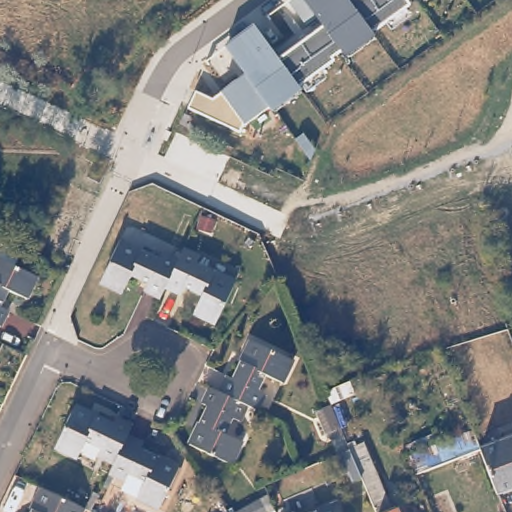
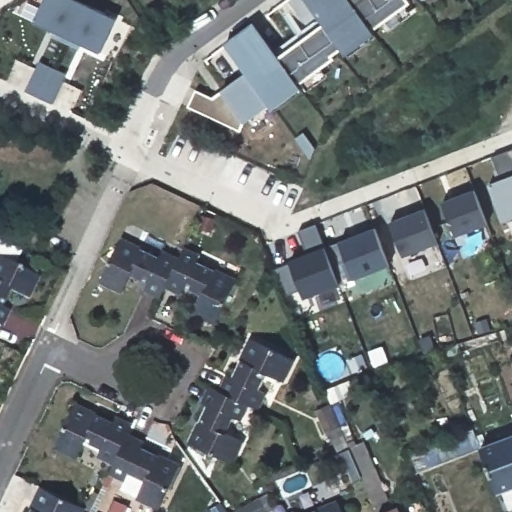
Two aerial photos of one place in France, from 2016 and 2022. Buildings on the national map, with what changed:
new [(44,0),(78,0),(116,17),(102,52),(34,21),(44,0)]
unchanged [(372,31),(375,36),(348,56),(343,51),(299,85),(302,89),(274,111),(269,105),(245,125),(241,132),(187,106),(195,90),(215,98),(221,93),(246,74),(224,44),(254,21),(278,56),(321,24),(305,0),(413,0),(372,31)]
new [(503,222),(488,182),(498,177),(493,155),(512,148),(512,219),(503,222)]
new [(473,189),(488,224),(455,236),(441,201),(473,189)]
new [(424,207),(437,242),(402,256),(388,221),(424,207)]
new [(290,263),(290,262),(306,255),(297,232),(316,225),(325,248),(332,267),(339,286),(303,299),(300,291),(285,297),(274,270),(290,263)]
new [(375,229),(389,267),(353,280),(346,261),(332,267),(325,248),(375,229)]
unchanged [(166,286),(162,297),(145,288),(149,281),(130,272),(122,291),(101,281),(120,239),(160,256),(162,250),(180,257),(166,286)]
unchanged [(184,249),(200,257),(198,262),(236,279),(216,322),(194,312),(202,294),(185,287),(182,293),(166,286),(180,257),(184,249)]
unchanged [(20,297),(3,288),(0,294),(0,258),(31,274),(20,297)]
unchanged [(0,317),(0,308),(4,310),(0,317)]
unchanged [(226,375),(232,377),(250,340),(292,360),(283,382),(264,372),(256,389),(265,392),(257,409),(247,404),(219,391),(226,375)]
unchanged [(247,404),(240,421),(232,417),(225,433),(241,442),(231,463),(190,443),(207,406),(202,403),(210,387),(219,391),(247,404)]
unchanged [(327,441),(324,433),(315,411),(331,404),(340,427),(344,435),(327,441)]
unchanged [(102,455),(105,447),(89,440),(81,457),(60,447),(79,406),(117,423),(120,418),(136,426),(131,437),(119,462),(102,455)]
unchanged [(498,493),(480,448),(512,436),(512,488),(498,493)]
unchanged [(146,443),(144,448),(182,466),(162,508),(124,490),(129,479),(114,472),(119,462),(131,437),(146,443)]
unchanged [(400,512),(377,512),(359,470),(350,448),(365,442),(373,464),(392,510),(398,507),(400,512)]
unchanged [(84,507),(81,512),(29,512),(41,487),(84,507)]
unchanged [(255,492),(260,498),(267,495),(274,512),(226,512),(225,508),(255,492)]
unchanged [(318,512),(341,502),(346,512),(318,512)]

